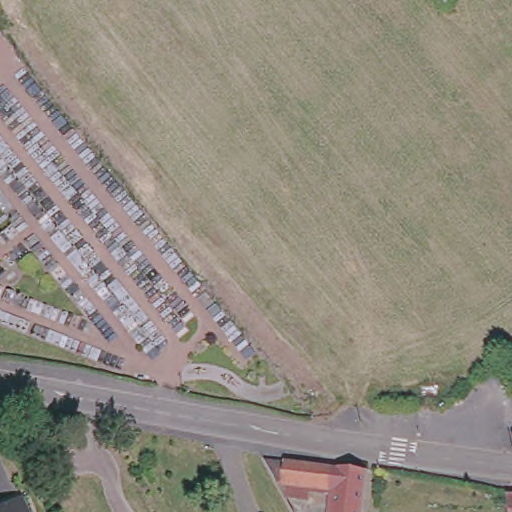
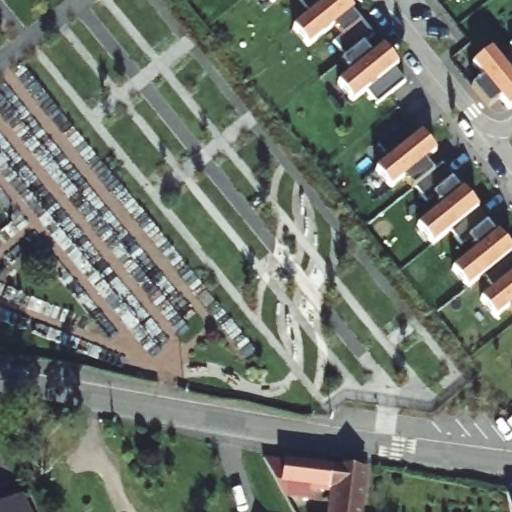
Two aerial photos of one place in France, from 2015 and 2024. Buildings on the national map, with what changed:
new [(267,0),(275,0),(270,4),(267,0)]
new [(360,44),(368,55),(381,45),(404,80),(378,101),(368,90),(352,101),(337,83),(353,70),(332,42),(340,35),(335,27),(310,48),(293,26),(310,11),(301,0),(345,0),(371,34),(360,44)]
new [(512,44),(512,49),(510,46),(512,44)]
new [(487,108),(472,88),(481,79),(472,67),(495,48),(502,57),(512,51),(512,108),(510,109),(500,98),(487,108)]
new [(419,133),(512,256),(512,311),(510,308),(494,320),(452,269),(476,249),(467,237),(462,242),(452,231),(434,248),(417,226),(440,206),(431,194),(422,201),(404,180),(389,192),(375,172),(390,158),(380,146),(407,122),(419,133)]
unchanged [(367,512),(336,512),(339,491),(316,489),(314,502),(290,499),(267,458),(342,469),(372,473),(367,512)]
unchanged [(22,498),(29,512),(0,512),(0,508),(22,498)]

